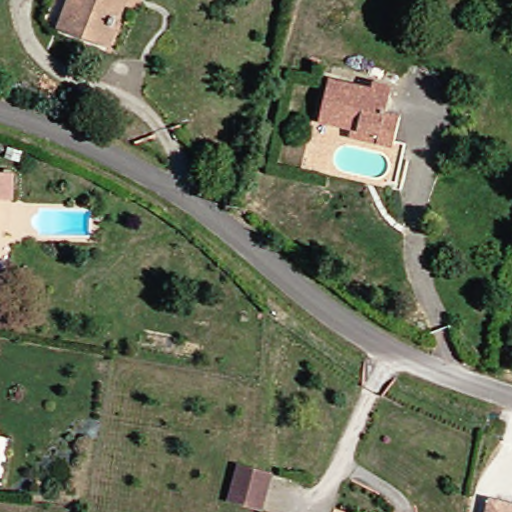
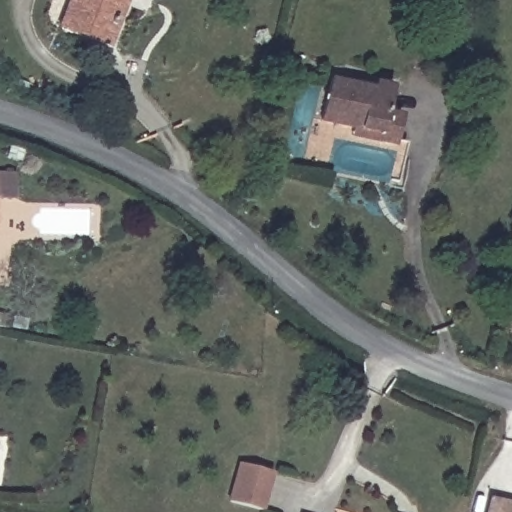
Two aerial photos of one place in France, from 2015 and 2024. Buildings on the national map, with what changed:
unchanged [(53,22),(61,0),(117,0),(103,36),(98,48),(74,39),(50,29),(53,22)]
unchanged [(343,129),(311,121),(320,80),(363,90),(365,83),(383,87),(381,94),(377,114),(391,117),(384,146),(369,143),(341,136),(343,129)]
unchanged [(8,200),(0,199),(0,174),(9,174),(8,200)]
unchanged [(262,512),(228,503),(239,464),(273,474),(262,512)]
unchanged [(512,506),(512,512),(486,512),(489,500),(512,506)]

